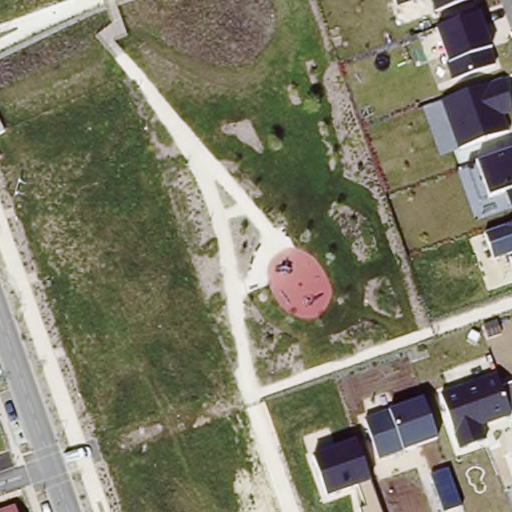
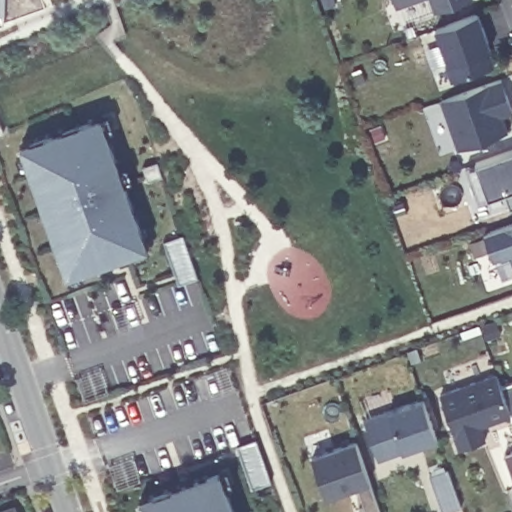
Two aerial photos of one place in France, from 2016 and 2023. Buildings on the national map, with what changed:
unchanged [(397,0),(419,0),(399,7),(397,0)]
unchanged [(438,0),(468,0),(442,10),(438,0)]
unchanged [(496,65),(456,79),(438,28),(479,11),(496,65)]
unchanged [(503,117),(508,131),(464,148),(447,100),(501,79),(512,103),(512,113),(503,117)]
new [(61,277),(50,244),(51,244),(45,229),(53,226),(40,190),(33,194),(27,178),(26,179),(23,169),(17,154),(15,146),(95,118),(102,115),(108,131),(100,134),(113,169),(120,166),(126,182),(118,184),(141,248),(126,254),(76,271),(79,278),(63,284),(61,277)]
unchanged [(490,196),(477,159),(512,147),(512,205),(509,191),(490,196)]
new [(17,154),(22,169),(15,172),(9,156),(17,154)]
unchanged [(485,233),(512,224),(512,254),(494,259),(485,233)]
new [(184,234),(199,278),(180,285),(164,242),(184,234)]
new [(140,248),(143,254),(128,260),(125,253),(140,248)]
unchanged [(497,374),(502,387),(512,414),(512,416),(480,428),(485,444),(460,450),(441,393),(497,374)]
unchanged [(512,383),(512,414),(502,387),(512,383)]
unchanged [(424,399),(437,440),(402,451),(378,457),(366,418),(388,409),(424,399)]
new [(257,438),(273,482),(253,489),(238,445),(257,438)]
unchanged [(312,457),(358,441),(380,512),(360,512),(360,511),(365,508),(357,487),(327,499),(312,457)]
new [(447,469),(460,506),(443,512),(442,512),(429,476),(447,469)]
new [(135,509),(132,502),(212,473),(213,474),(220,471),(226,487),(218,489),(226,512),(128,512),(135,509)]
unchanged [(17,512),(7,512),(16,509),(17,512)]

